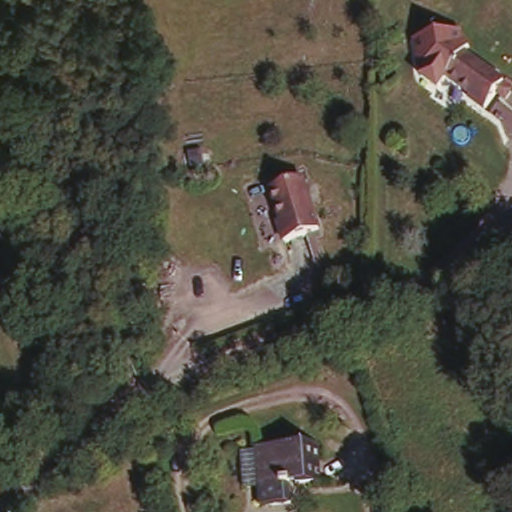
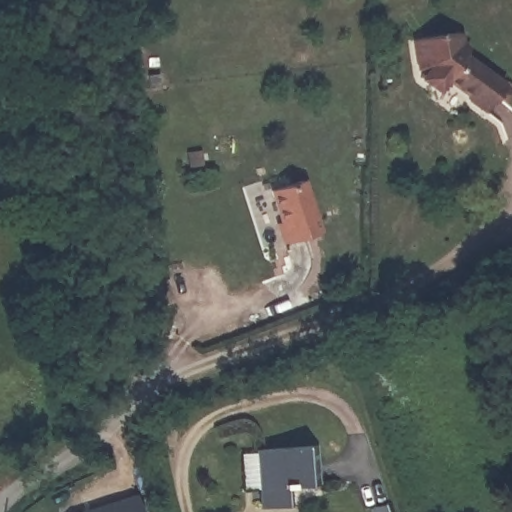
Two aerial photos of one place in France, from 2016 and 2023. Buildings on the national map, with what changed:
unchanged [(442,88),(423,73),(429,64),(423,65),(417,37),(464,30),(465,41),(462,40),(443,68),(454,75),(442,88)]
unchanged [(471,86),(443,68),(462,40),(512,76),(489,108),(467,91),(471,86)]
unchanged [(302,171),(323,224),(290,237),(268,184),(302,171)]
unchanged [(322,440),(328,479),(263,489),(259,450),(322,440)]
new [(139,497),(143,512),(87,512),(139,497)]

